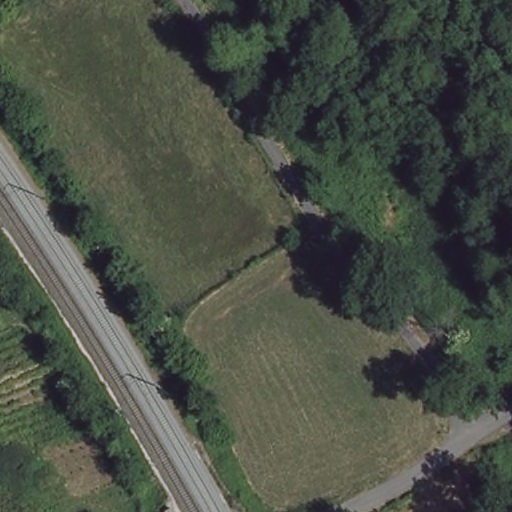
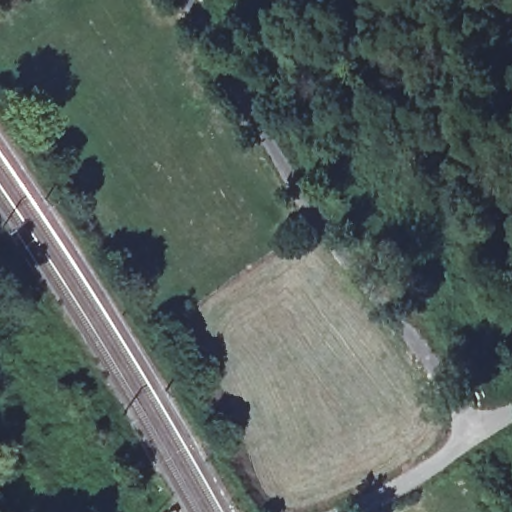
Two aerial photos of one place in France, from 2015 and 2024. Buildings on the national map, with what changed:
unchanged [(474,403),(468,408),(461,412),(451,393),(454,391),(457,389),(463,386),(474,403)]

